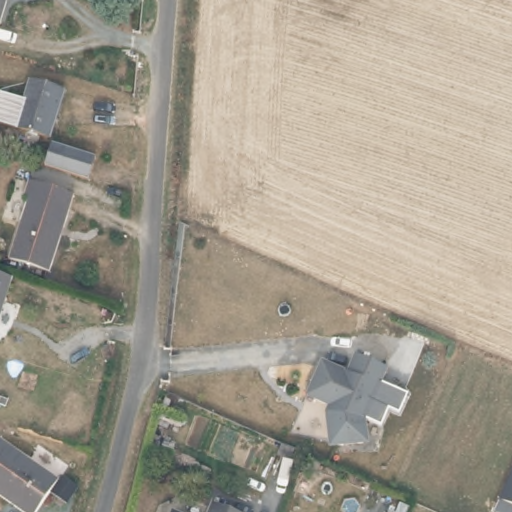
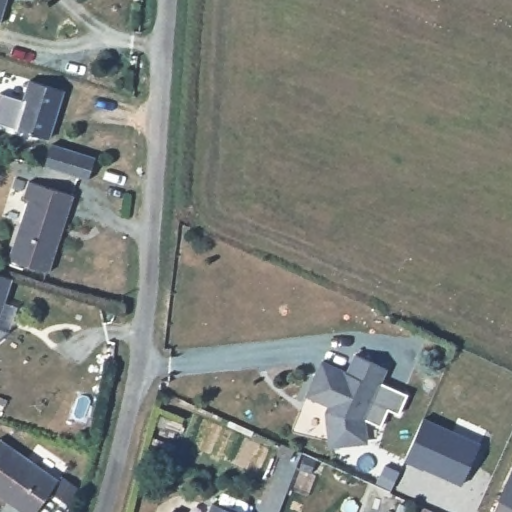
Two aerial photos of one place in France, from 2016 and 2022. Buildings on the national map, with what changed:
unchanged [(0,0),(4,0),(0,13),(0,0)]
unchanged [(48,137),(0,121),(0,91),(23,98),(29,78),(63,88),(48,137)]
unchanged [(50,143),(93,157),(86,178),(43,165),(50,143)]
unchanged [(7,262),(29,201),(23,197),(28,180),(74,197),(50,273),(7,262)]
unchanged [(0,301),(0,273),(8,276),(0,301)]
unchanged [(383,370),(362,420),(364,440),(360,445),(332,448),(328,444),(326,433),(329,429),(328,423),(325,423),(324,415),(327,407),(304,398),(319,364),(345,375),(352,357),(383,370)]
unchanged [(378,382),(406,396),(397,412),(387,408),(379,423),(363,417),(378,382)]
new [(422,418),(480,444),(462,486),(403,461),(422,418)]
unchanged [(0,500),(0,442),(56,482),(35,512),(17,512),(0,500)]
unchanged [(512,466),(512,512),(493,512),(512,466)]
unchanged [(209,505),(227,512),(206,512),(209,505)]

